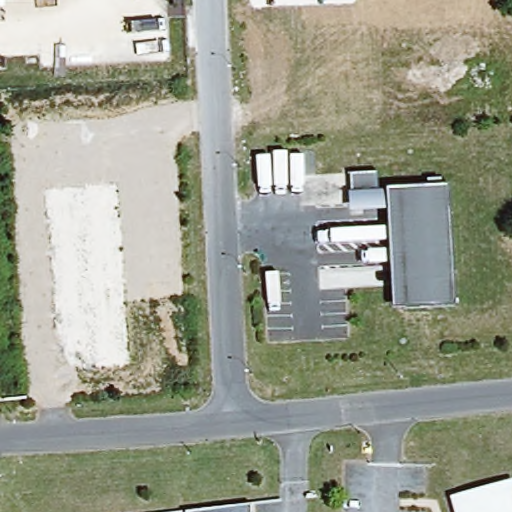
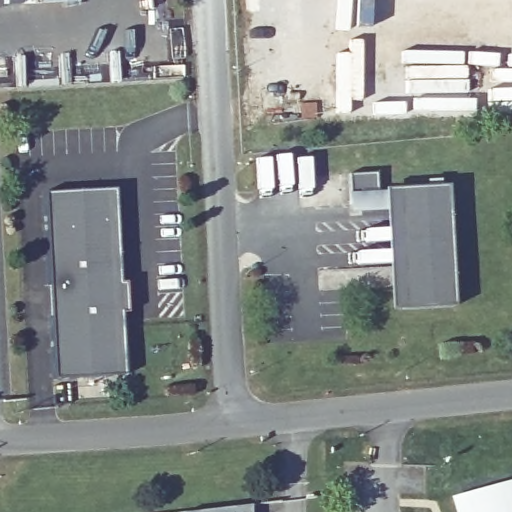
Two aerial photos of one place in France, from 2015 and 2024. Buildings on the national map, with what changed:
unchanged [(386,211),(347,213),(347,191),(353,191),(352,172),(375,171),(376,189),(384,189),(448,185),(453,303),(391,306),(386,211)]
new [(115,188),(120,282),(126,282),(127,312),(121,313),(125,375),(53,379),(43,192),(115,188)]
unchanged [(512,504),(512,512),(461,512),(457,499),(507,484),(512,504)]
unchanged [(251,510),(251,512),(236,512),(251,510)]

